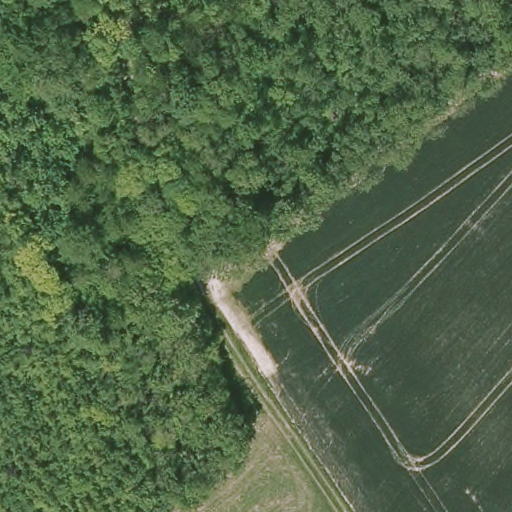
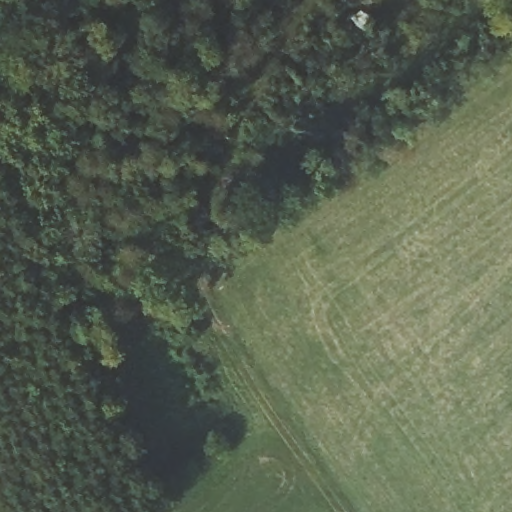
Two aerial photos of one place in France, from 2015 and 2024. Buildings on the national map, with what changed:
unchanged [(145,7),(144,0),(162,0),(162,5),(145,7)]

